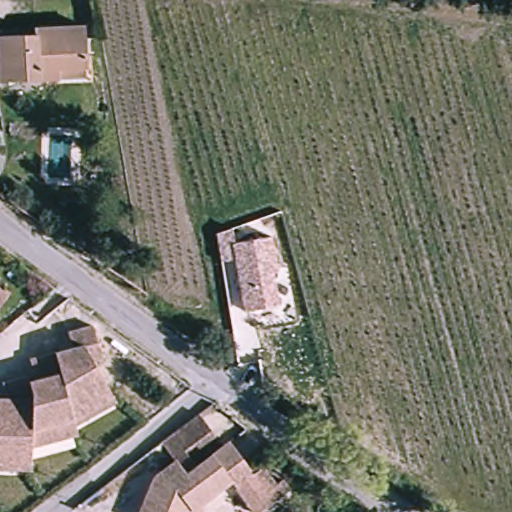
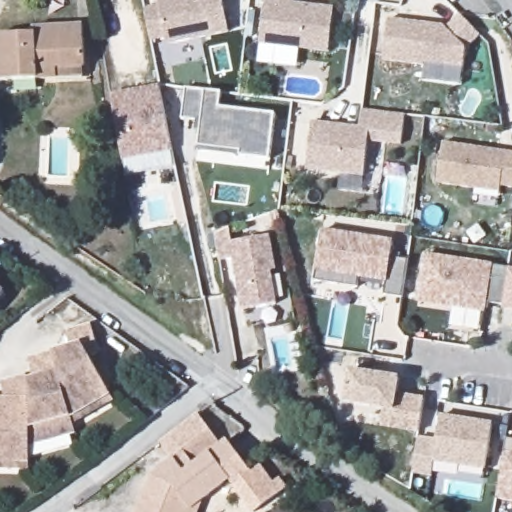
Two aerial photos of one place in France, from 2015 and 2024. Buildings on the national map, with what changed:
new [(168,45),(166,39),(153,41),(145,10),(161,5),(158,0),(223,0),(231,32),(168,45)]
new [(328,51),(261,45),(265,1),(334,8),(328,51)]
new [(467,50),(464,69),(385,61),(389,19),(449,26),(461,15),(482,35),(467,50)]
unchanged [(42,79),(42,75),(0,75),(0,26),(42,25),(43,20),(84,20),(86,64),(86,77),(42,79)]
new [(173,151),(123,160),(111,94),(160,85),(173,151)]
new [(269,159),(198,151),(202,124),(182,119),(185,90),(210,92),(223,94),(221,109),(276,115),(269,159)]
new [(401,145),(370,142),(365,176),(308,170),(314,123),(360,127),(363,110),(407,115),(401,145)]
new [(499,191),(440,184),(446,143),(512,152),(512,190),(500,189),(499,191)]
unchanged [(222,261),(216,230),(233,227),(237,243),(273,235),(279,268),(272,269),(278,303),(244,308),(235,260),(222,261)]
new [(386,284),(359,280),(358,287),(315,280),(316,270),(322,229),(394,241),(392,256),(409,261),(402,298),(385,296),(386,284)]
new [(509,267),(512,268),(512,309),(502,307),(502,303),(487,300),(485,311),(416,302),(424,254),(492,265),(509,267)]
unchanged [(1,287),(0,288),(0,286),(1,287)]
unchanged [(75,430),(30,443),(29,459),(0,460),(0,398),(3,397),(0,383),(0,380),(26,375),(35,374),(31,357),(54,352),(57,358),(70,348),(65,332),(93,325),(97,341),(83,347),(108,393),(72,416),(75,430)]
new [(382,410),(344,403),(349,370),(401,378),(399,392),(425,397),(419,432),(382,427),(382,410)]
unchanged [(228,454),(235,450),(263,482),(249,496),(243,488),(231,497),(209,512),(147,512),(161,481),(178,467),(160,440),(196,411),(228,454)]
new [(437,436),(440,415),(493,423),(484,471),(434,462),(431,477),(413,474),(419,437),(437,436)]
new [(504,452),(506,439),(512,440),(512,503),(497,501),(504,452)]

